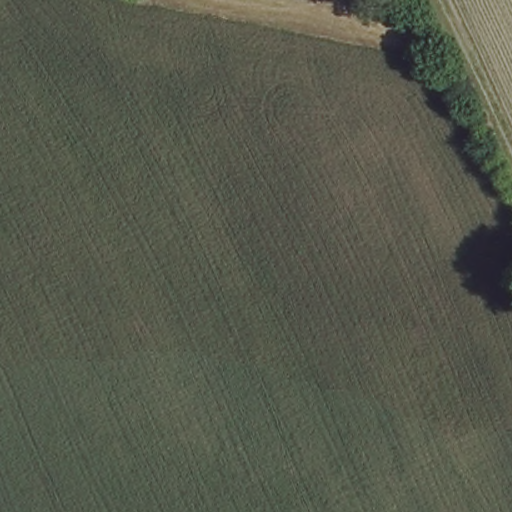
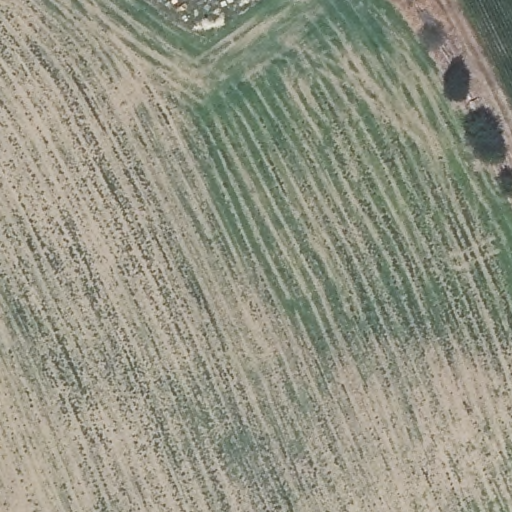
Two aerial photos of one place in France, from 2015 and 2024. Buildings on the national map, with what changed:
[]

